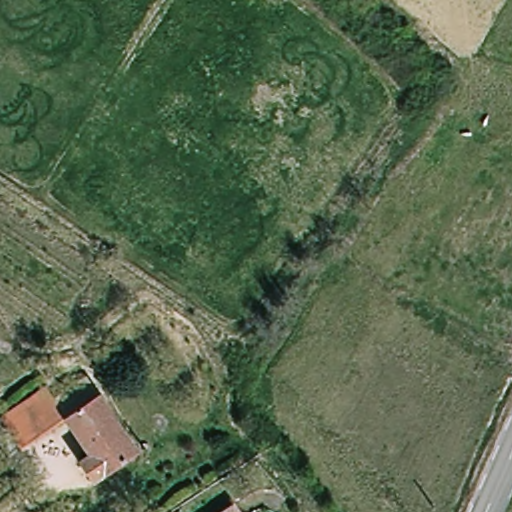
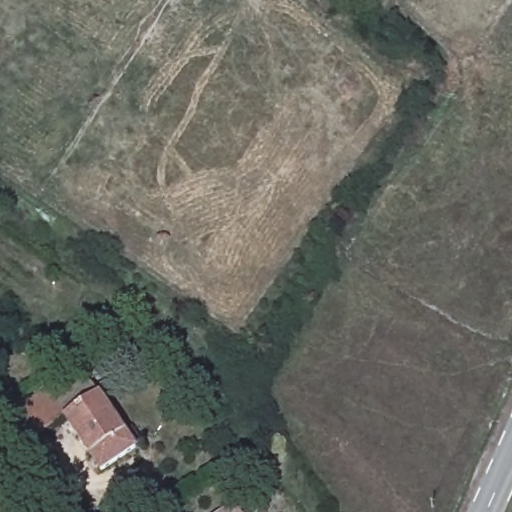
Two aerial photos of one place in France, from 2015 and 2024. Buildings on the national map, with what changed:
unchanged [(59,398),(97,376),(140,452),(91,480),(77,457),(90,450),(68,412),(59,398)]
unchanged [(59,398),(68,412),(21,439),(5,409),(52,384),(59,398)]
unchanged [(242,500),(248,512),(221,512),(242,500)]

